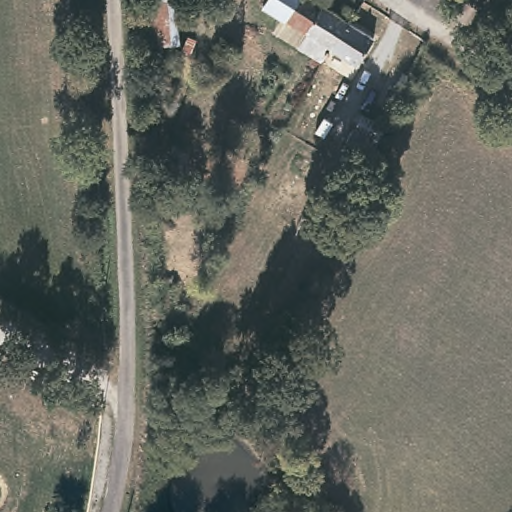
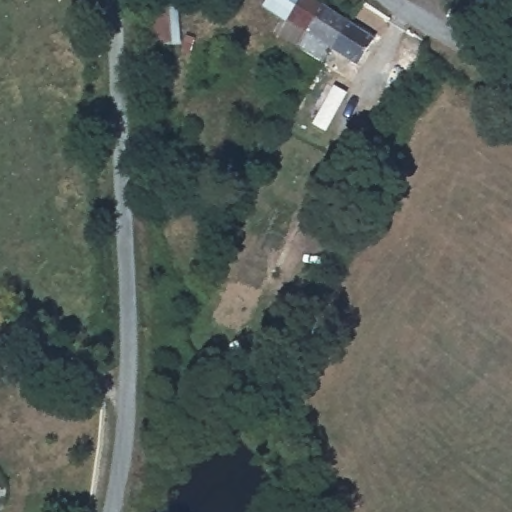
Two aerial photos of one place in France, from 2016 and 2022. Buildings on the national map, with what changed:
unchanged [(313,54),(291,40),(299,28),(275,11),(281,0),(316,0),(337,14),(320,44),(313,54)]
unchanged [(337,14),(366,33),(346,61),(320,44),(337,14)]

